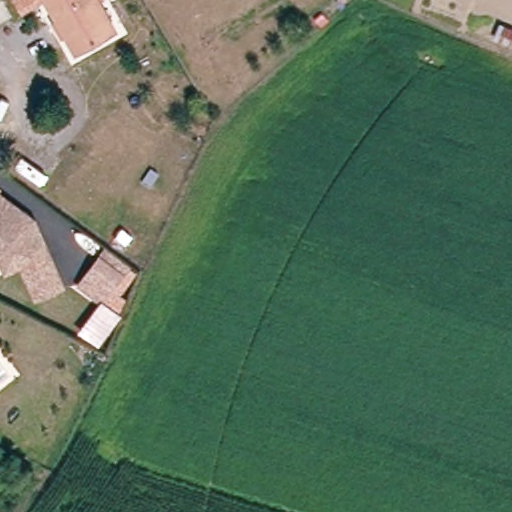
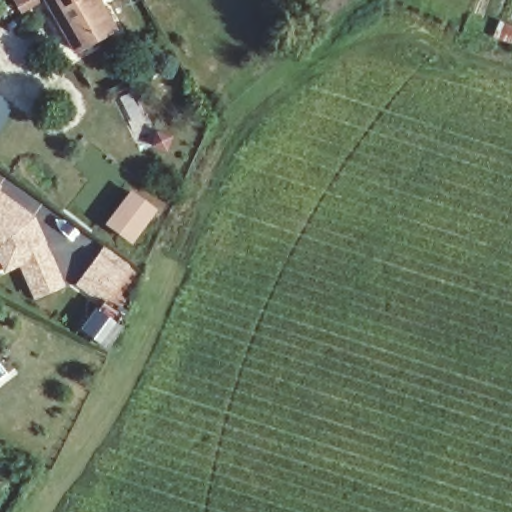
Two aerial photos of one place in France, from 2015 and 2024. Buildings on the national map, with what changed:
unchanged [(26,0),(54,0),(29,8),(26,0)]
unchanged [(77,51),(54,0),(98,0),(115,35),(77,51)]
new [(131,189),(158,209),(132,244),(105,224),(131,189)]
unchanged [(4,263),(0,256),(0,192),(26,211),(34,225),(47,218),(56,235),(43,242),(4,263)]
unchanged [(109,302),(100,296),(79,280),(105,243),(128,258),(135,265),(109,302)]

